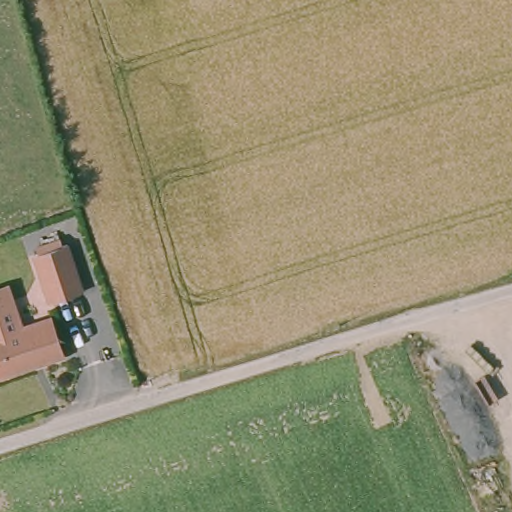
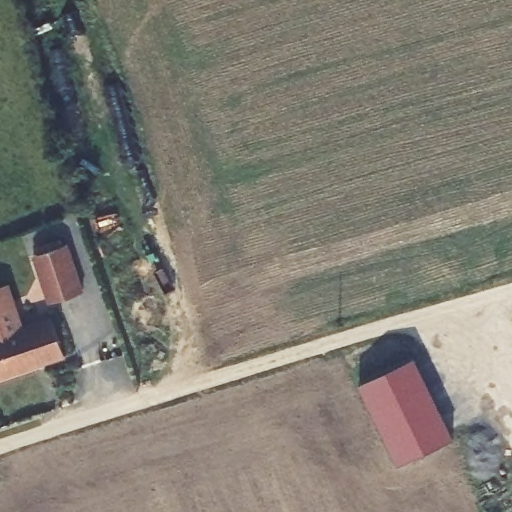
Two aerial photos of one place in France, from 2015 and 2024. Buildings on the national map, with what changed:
unchanged [(41,256),(65,248),(67,254),(72,253),(87,301),(54,312),(38,264),(43,262),(41,256)]
unchanged [(64,354),(0,376),(0,286),(7,284),(14,304),(22,326),(51,316),(64,354)]
new [(358,384),(414,357),(454,438),(397,465),(358,384)]

